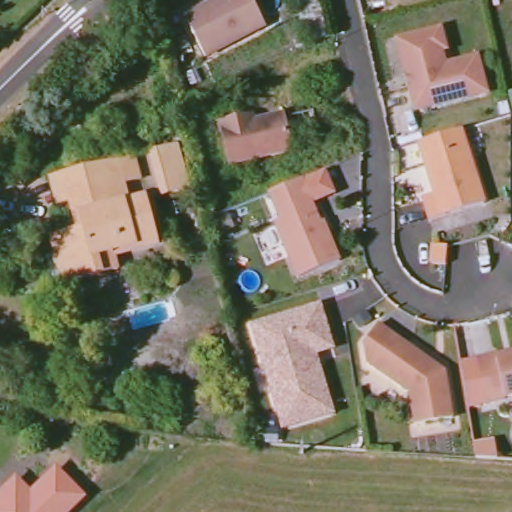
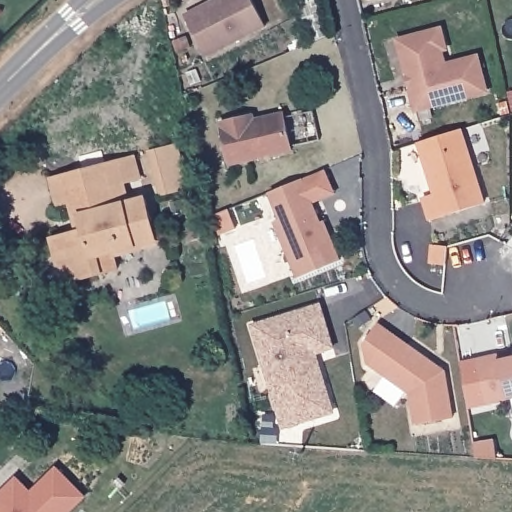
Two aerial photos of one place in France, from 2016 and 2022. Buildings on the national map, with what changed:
unchanged [(215,1),(218,5),(229,0),(255,0),(267,27),(205,57),(186,15),(215,1)]
unchanged [(397,40),(432,31),(441,28),(446,49),(439,50),(444,66),(478,57),(487,92),(415,111),(409,88),(406,76),(397,40)]
unchanged [(254,115),(256,120),(285,113),(293,151),(229,165),(221,122),(254,115)]
unchanged [(467,128),(489,204),(433,221),(426,198),(435,195),(419,142),(467,128)]
unchanged [(148,148),(176,141),(188,186),(161,194),(148,148)]
unchanged [(73,232),(66,206),(54,209),(46,180),(116,161),(128,201),(141,198),(155,246),(111,259),(114,271),(61,286),(48,239),(73,232)]
unchanged [(321,222),(326,221),(330,230),(343,261),(298,279),(276,224),(281,222),(269,193),(302,179),(321,222)]
unchanged [(433,268),(434,249),(449,250),(448,269),(433,268)]
unchanged [(256,324),(324,304),(337,348),(319,354),(311,355),(326,403),(282,416),(256,324)]
unchanged [(457,418),(420,425),(414,394),(373,366),(368,343),(383,324),(430,358),(439,364),(449,371),(457,418)]
unchanged [(336,412),(285,428),(282,416),(326,403),(311,355),(319,354),(336,412)]
unchanged [(479,362),(500,357),(512,354),(512,400),(489,405),(479,362)]
unchanged [(30,491),(56,467),(87,498),(72,512),(0,512),(0,492),(16,475),(30,491)]

